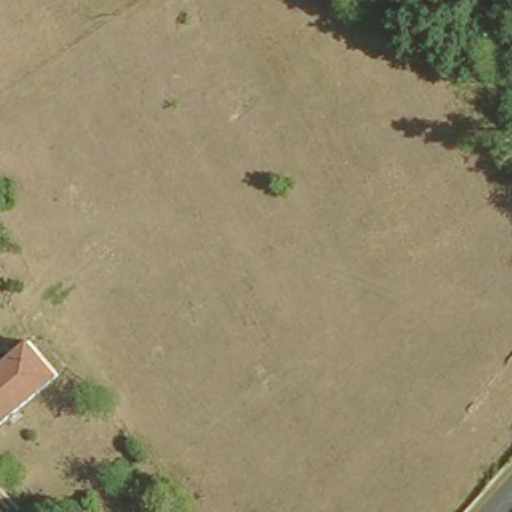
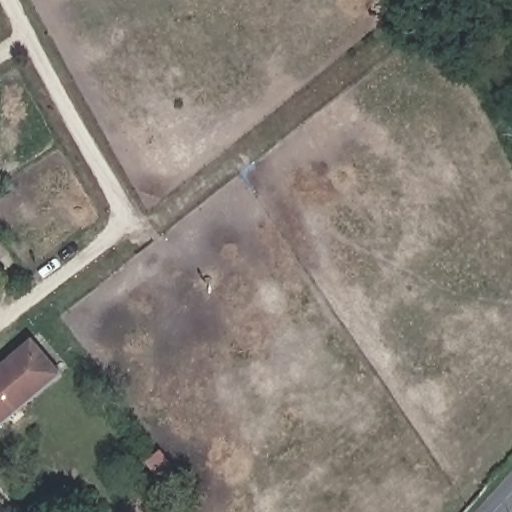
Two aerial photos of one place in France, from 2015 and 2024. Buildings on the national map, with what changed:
unchanged [(32,340),(60,375),(0,428),(0,366),(32,340)]

